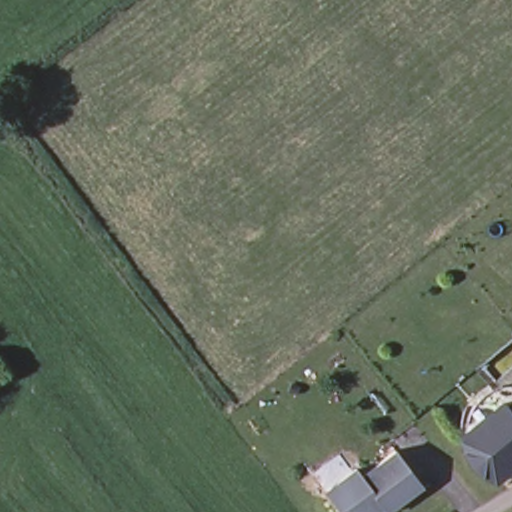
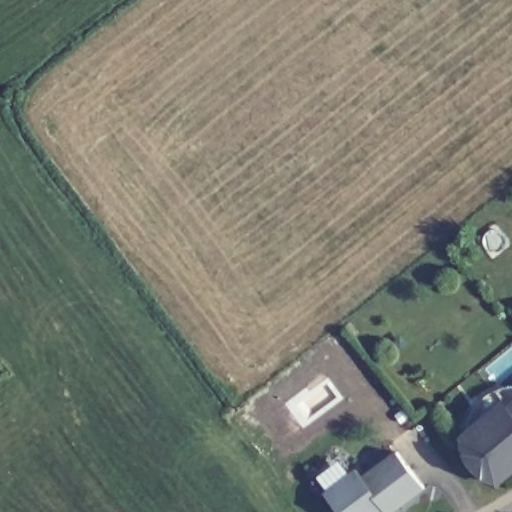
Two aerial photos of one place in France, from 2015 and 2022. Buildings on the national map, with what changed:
unchanged [(490,484),(483,480),(477,476),(472,470),(468,464),(465,457),(462,449),(461,442),(468,437),(470,424),(475,412),(483,402),(495,395),(505,407),(508,412),(512,409),(512,475),(497,487),(490,484)]
unchanged [(358,472),(363,480),(397,455),(424,490),(395,512),(386,512),(339,512),(326,495),(358,472)]

